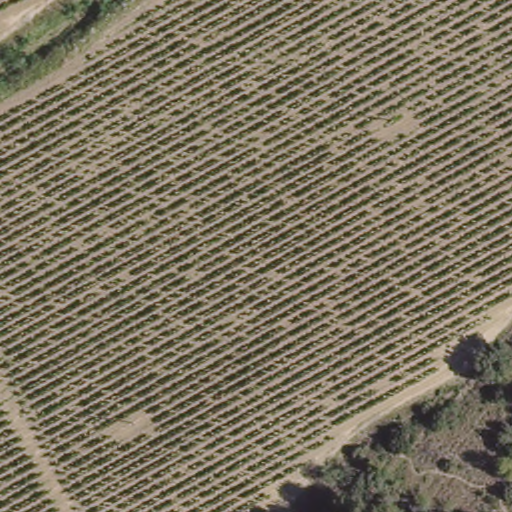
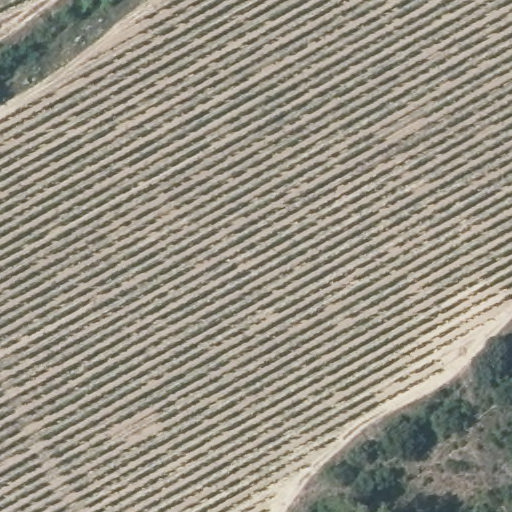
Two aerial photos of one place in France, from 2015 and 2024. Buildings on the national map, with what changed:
[]

